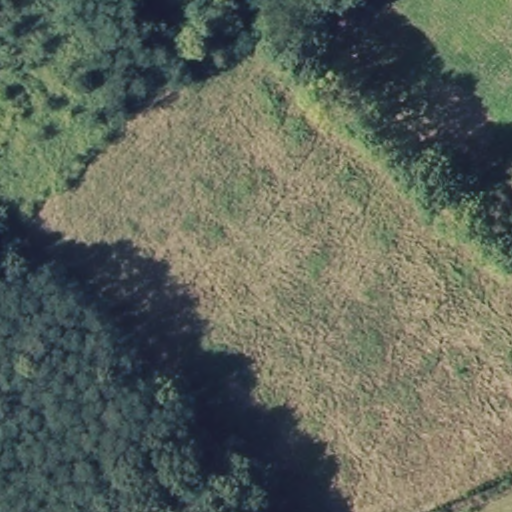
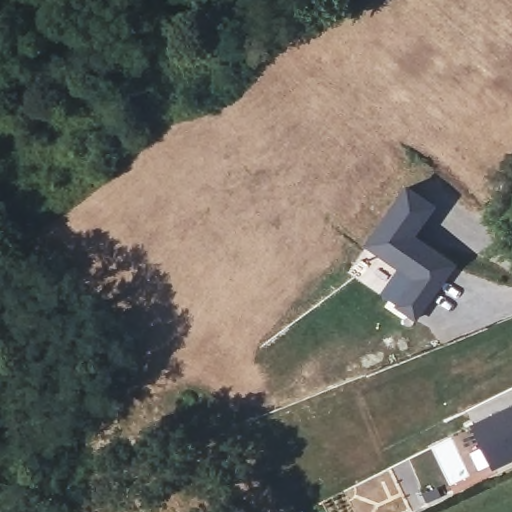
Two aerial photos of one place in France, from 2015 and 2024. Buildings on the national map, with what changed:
new [(438,206),(418,234),(458,264),(416,322),(395,307),(414,280),(364,246),(408,185),(438,206)]
new [(493,467),(475,426),(512,408),(512,458),(493,467)]

